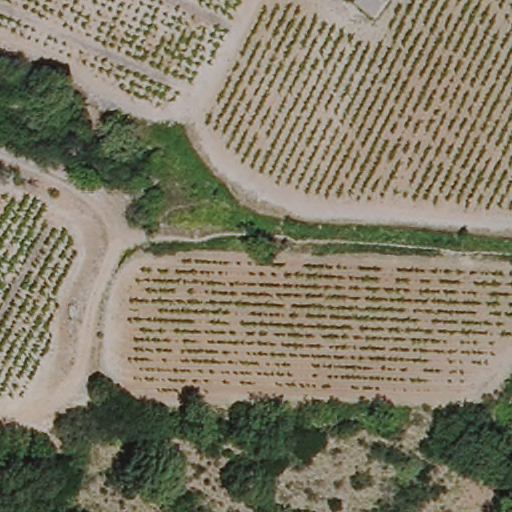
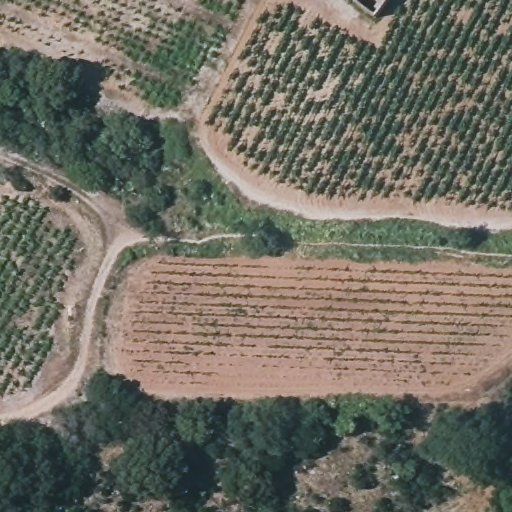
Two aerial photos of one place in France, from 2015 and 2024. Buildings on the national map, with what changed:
unchanged [(355,0),(384,0),(369,17),(352,4),(355,0)]

